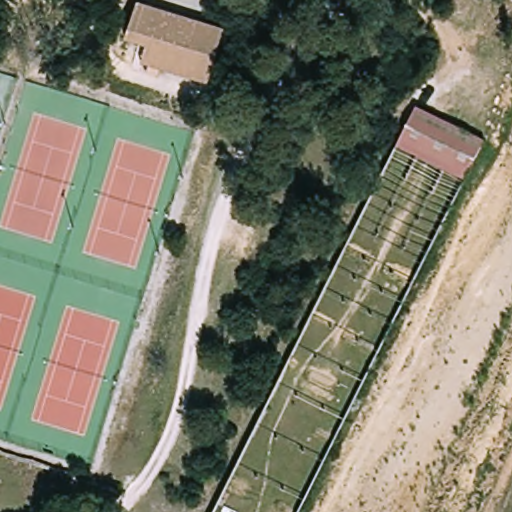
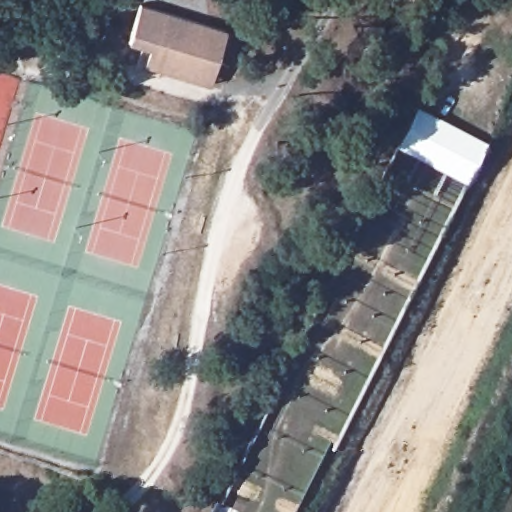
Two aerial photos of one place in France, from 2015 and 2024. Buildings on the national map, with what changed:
unchanged [(158,45),(134,37),(145,2),(231,30),(220,66),(158,45)]
unchanged [(214,85),(151,66),(158,45),(220,66),(214,85)]
unchanged [(424,102),(490,138),(470,176),(403,142),(424,102)]

